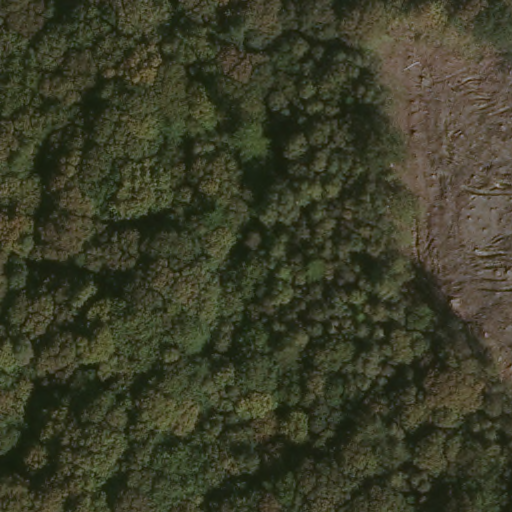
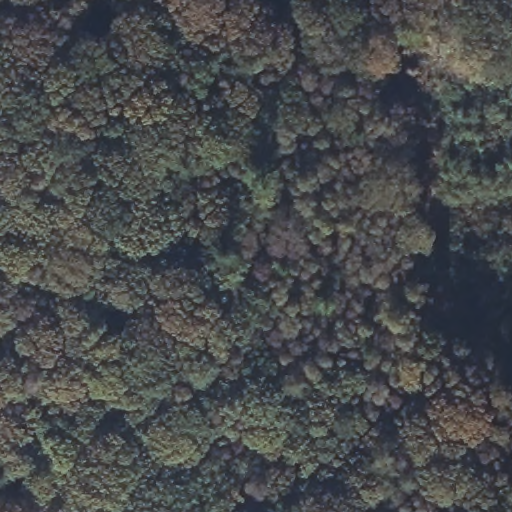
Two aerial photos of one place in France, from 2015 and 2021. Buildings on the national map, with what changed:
[]

